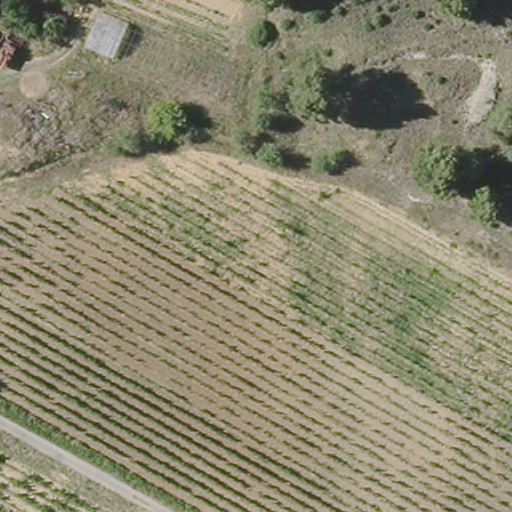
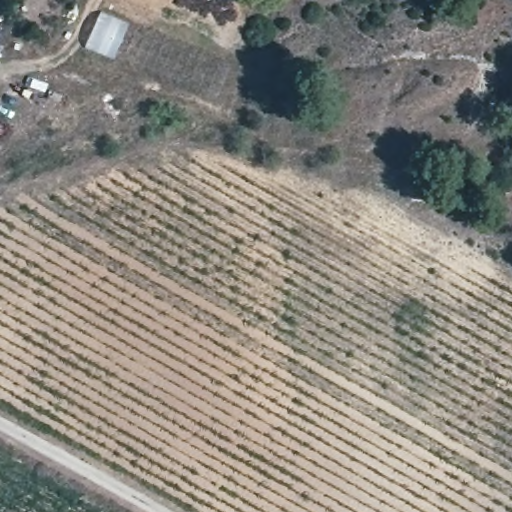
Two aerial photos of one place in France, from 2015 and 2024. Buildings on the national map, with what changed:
[]

